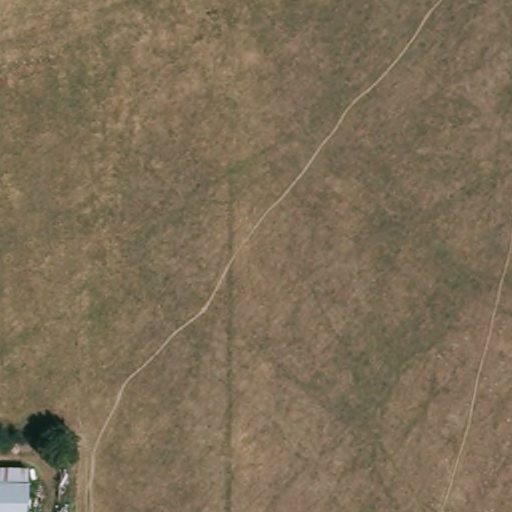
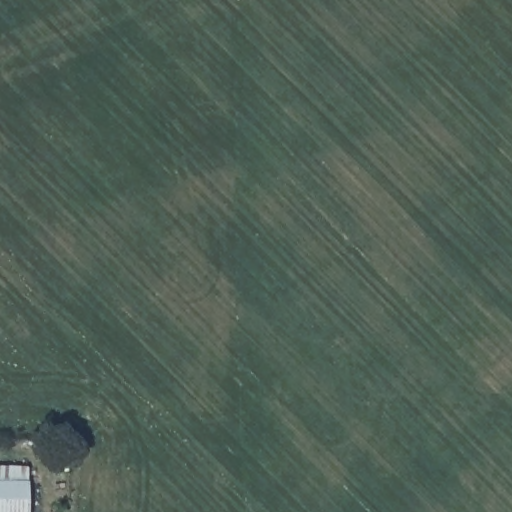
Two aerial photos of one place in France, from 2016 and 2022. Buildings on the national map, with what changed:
unchanged [(32,512),(0,512),(0,480),(33,481),(32,512)]

